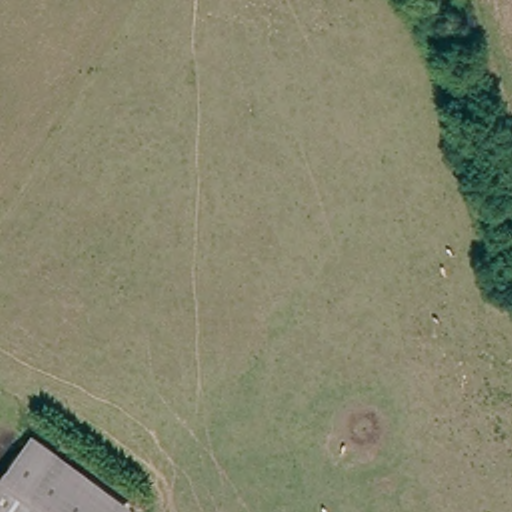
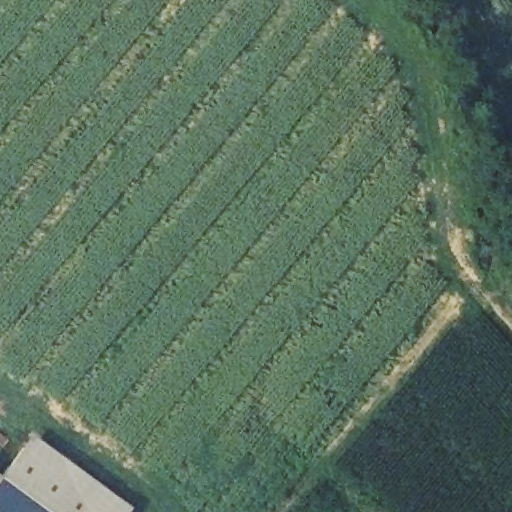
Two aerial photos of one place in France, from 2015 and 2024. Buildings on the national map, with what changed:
unchanged [(117,512),(49,512),(1,478),(22,446),(117,512)]
unchanged [(49,512),(0,512),(0,478),(1,478),(49,512)]

